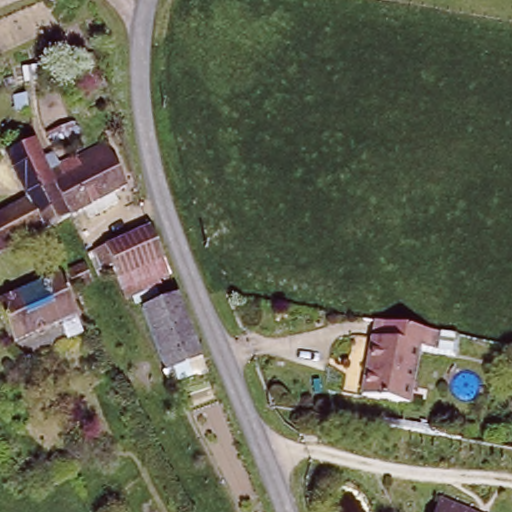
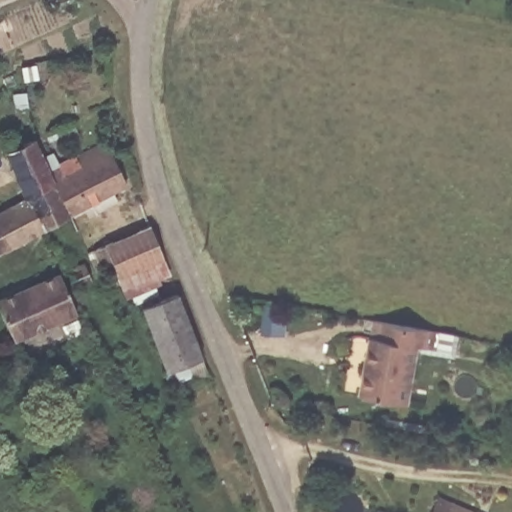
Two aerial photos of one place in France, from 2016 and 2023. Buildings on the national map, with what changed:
unchanged [(7,163),(20,157),(7,101),(20,98),(32,148),(50,185),(67,220),(42,234),(25,203),(7,163)]
unchanged [(75,171),(72,164),(99,148),(122,190),(67,220),(50,185),(75,171)]
unchanged [(42,234),(0,257),(0,216),(25,203),(42,234)]
unchanged [(135,238),(137,240),(155,232),(172,275),(160,282),(155,271),(142,277),(145,282),(136,287),(134,284),(127,288),(117,269),(110,273),(102,254),(135,238)]
unchanged [(85,264),(92,280),(77,286),(70,271),(85,264)]
unchanged [(60,274),(78,311),(20,338),(0,299),(60,274)]
unchanged [(143,304),(179,293),(203,360),(165,374),(143,304)]
unchanged [(458,329),(455,350),(441,347),(421,343),(412,403),(365,395),(378,315),(458,329)]
unchanged [(458,512),(441,512),(444,506),(458,512)]

